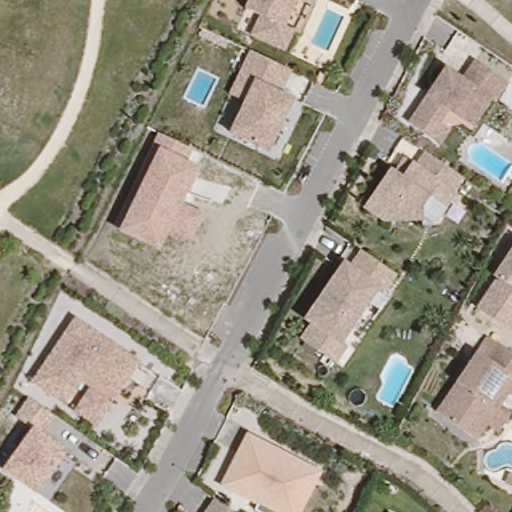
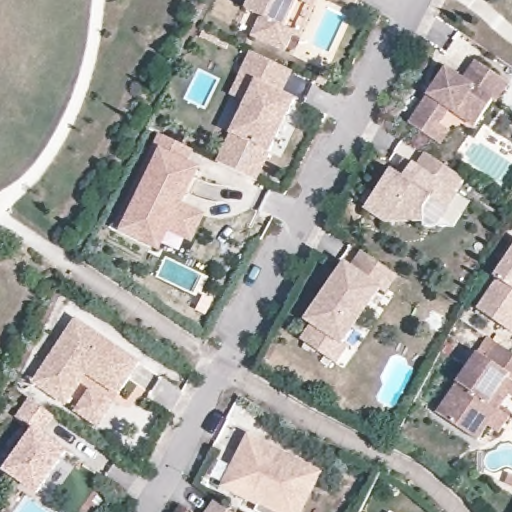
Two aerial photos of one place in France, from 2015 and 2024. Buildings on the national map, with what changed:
unchanged [(241,11),(246,0),(297,0),(285,28),(293,32),(282,54),(249,37),(258,19),(241,11)]
unchanged [(297,0),(314,0),(312,7),(297,0)]
unchanged [(240,106),(225,100),(248,52),(289,74),(279,94),(293,102),(268,154),(228,136),(240,106)]
unchanged [(496,100),(493,98),(475,124),(450,107),(431,136),(410,122),(410,121),(432,88),(436,82),(448,65),(464,76),(476,58),(509,80),(496,100)]
unchanged [(113,229),(159,133),(193,149),(188,162),(200,168),(184,202),(204,217),(191,242),(169,232),(159,252),(119,232),(113,229)]
new [(268,154),(257,179),(218,160),(228,136),(268,154)]
unchanged [(432,156),(469,181),(460,195),(463,197),(453,211),(437,200),(430,211),(430,224),(429,224),(391,225),(371,211),(397,172),(402,176),(405,171),(411,162),(418,167),(423,170),(432,156)]
unchanged [(384,285),(377,280),(340,336),(346,340),(334,357),(299,333),(310,317),(304,313),(319,292),(327,279),(342,257),(349,261),(360,246),(394,270),(384,285)]
unchanged [(480,307),(501,277),(497,275),(512,253),(512,314),(505,324),(480,307)]
unchanged [(384,285),(390,288),(341,361),(334,357),(346,340),(340,336),(377,280),(384,285)]
unchanged [(75,413),(86,391),(98,398),(104,389),(84,377),(65,409),(30,383),(71,319),(137,363),(96,428),(75,413)]
unchanged [(479,433),(470,427),(438,406),(479,346),(488,352),(498,336),(512,345),(512,386),(511,387),(507,385),(496,400),(500,403),(479,433)]
unchanged [(0,471),(29,430),(11,421),(25,400),(50,417),(40,435),(62,452),(33,495),(0,471)]
unchanged [(305,512),(267,512),(261,509),(265,502),(237,488),(230,484),(240,464),(255,435),(316,467),(326,472),(305,512)]
unchanged [(216,499),(218,500),(235,512),(207,512),(216,499)]
unchanged [(393,511),(395,512),(393,512),(393,511)]

